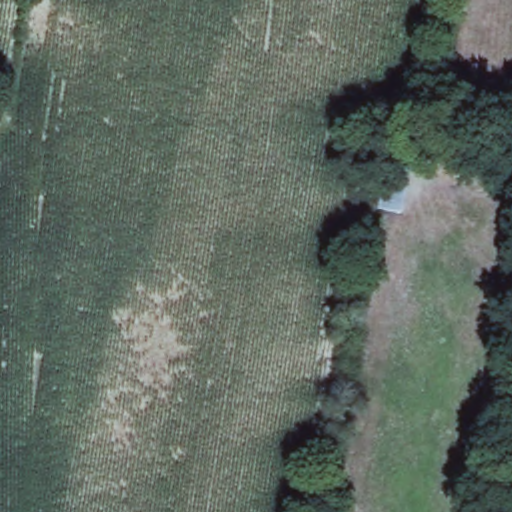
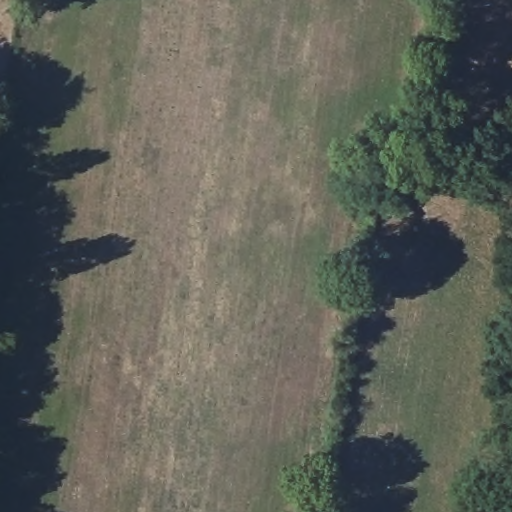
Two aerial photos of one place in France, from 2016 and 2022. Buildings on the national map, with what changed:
unchanged [(407,136),(404,167),(385,167),(387,136),(407,136)]

